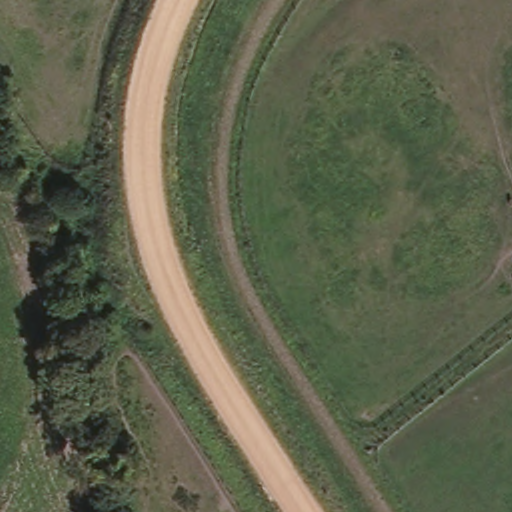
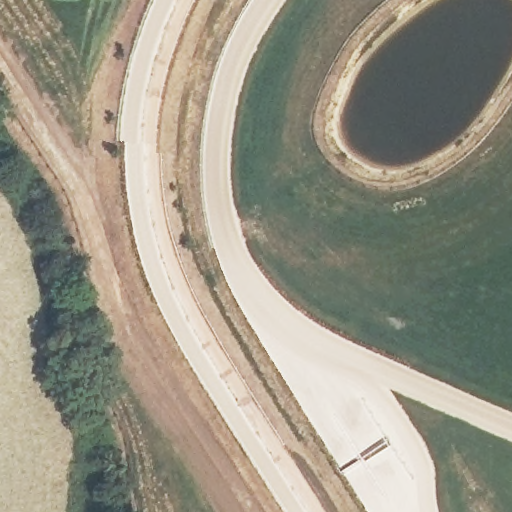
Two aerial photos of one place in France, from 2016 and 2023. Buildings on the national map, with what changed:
[]

